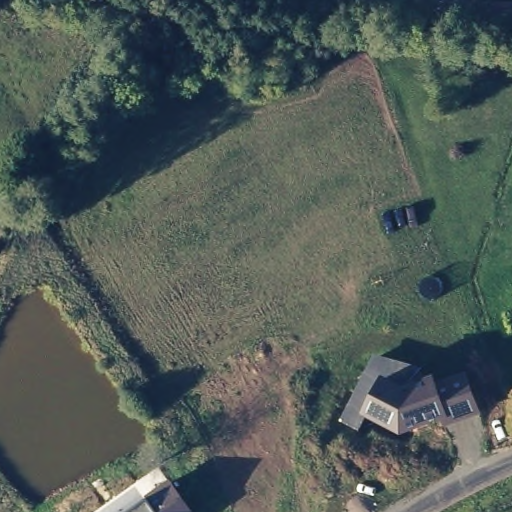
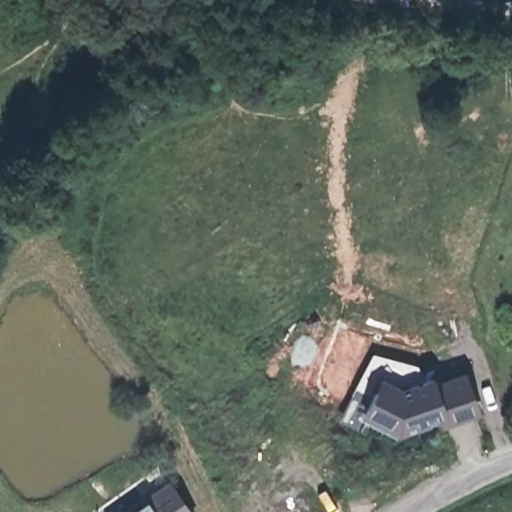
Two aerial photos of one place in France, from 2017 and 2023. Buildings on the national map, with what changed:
unchanged [(357,429),(340,421),(374,356),(420,369),(411,386),(433,376),(436,384),(469,373),(481,413),(442,426),(440,421),(400,434),(363,415),(357,429)]
unchanged [(186,512),(132,512),(168,487),(186,512)]

